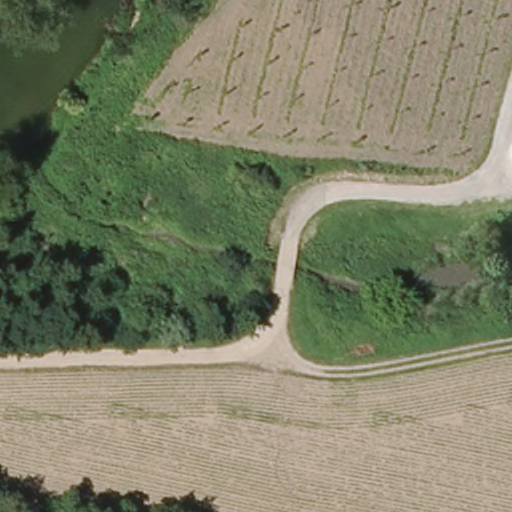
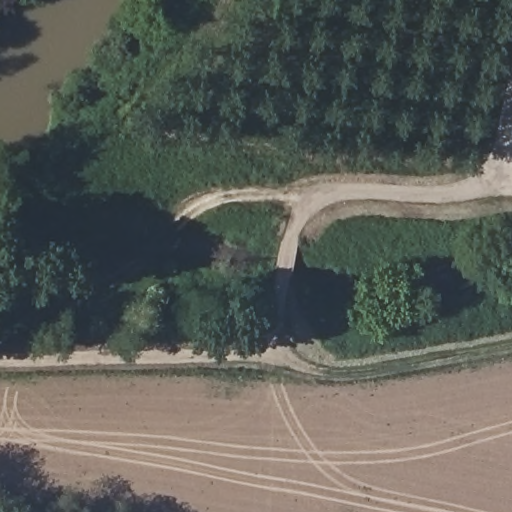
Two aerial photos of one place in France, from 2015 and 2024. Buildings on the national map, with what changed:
[]

